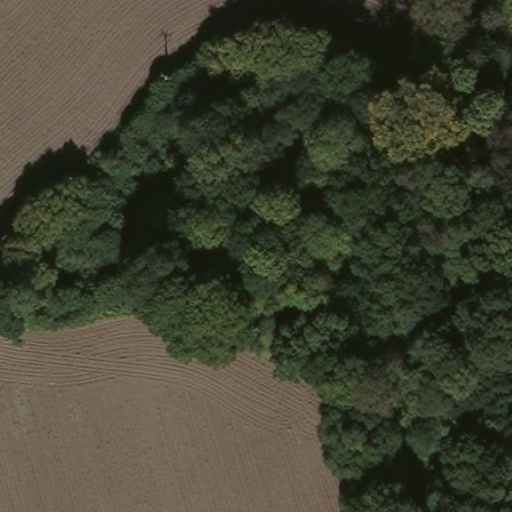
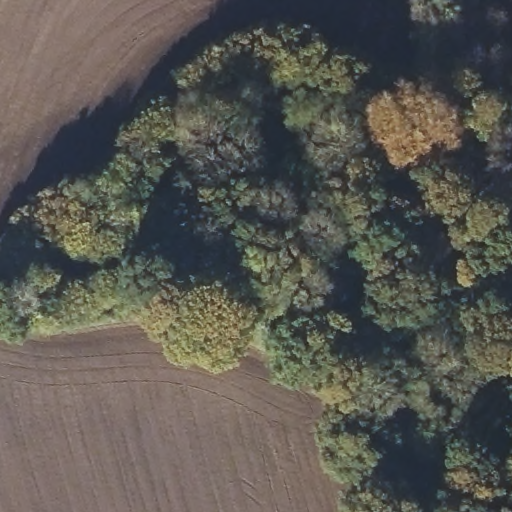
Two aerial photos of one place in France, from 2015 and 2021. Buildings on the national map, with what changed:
[]

